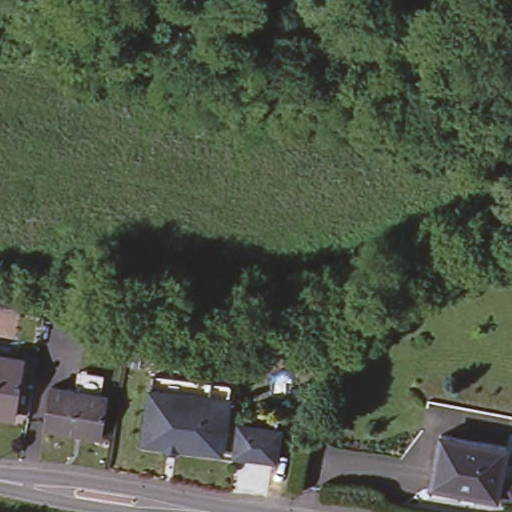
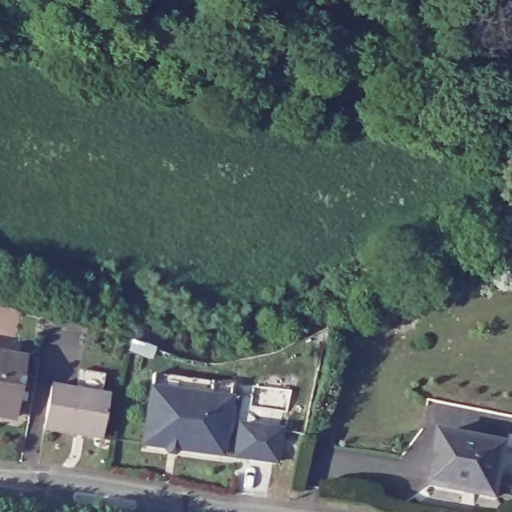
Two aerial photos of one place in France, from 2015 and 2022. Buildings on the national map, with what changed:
unchanged [(24,361),(12,420),(0,418),(0,357),(24,361)]
unchanged [(152,375),(230,385),(229,400),(150,390),(152,375)]
unchanged [(51,387),(107,397),(100,439),(45,429),(51,387)]
unchanged [(229,400),(222,454),(143,445),(150,390),(229,400)]
unchanged [(279,431),(275,461),(235,456),(240,426),(279,431)]
unchanged [(507,443),(495,500),(425,489),(435,430),(507,443)]

